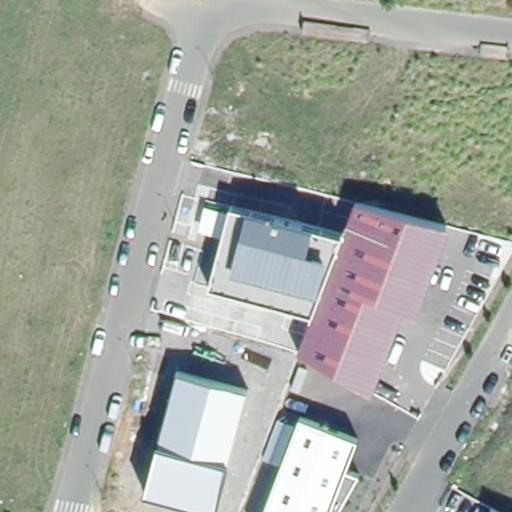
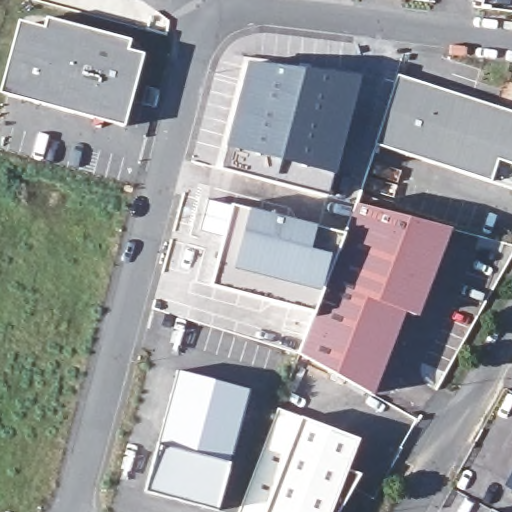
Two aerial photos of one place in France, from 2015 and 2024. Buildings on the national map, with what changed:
new [(0,95),(0,87),(18,21),(42,27),(45,19),(127,40),(125,50),(142,55),(123,125),(0,95)]
new [(358,76),(326,192),(221,165),(249,62),(358,76)]
new [(374,144),(397,75),(512,113),(512,187),(488,180),(374,144)]
unchanged [(230,206),(247,210),(313,226),(342,238),(312,316),(210,286),(230,206)]
unchanged [(312,316),(342,238),(354,206),(446,230),(413,317),(400,313),(369,396),(297,356),(312,316)]
unchanged [(177,373),(246,390),(228,462),(216,511),(145,491),(158,443),(177,373)]
unchanged [(346,470),(359,475),(339,512),(264,512),(299,418),(357,439),(346,470)]
new [(512,466),(512,490),(502,484),(512,466)]
unchanged [(492,512),(493,510),(497,512),(492,512)]

